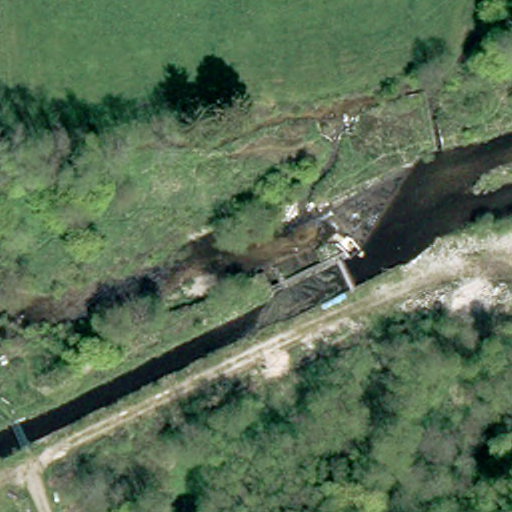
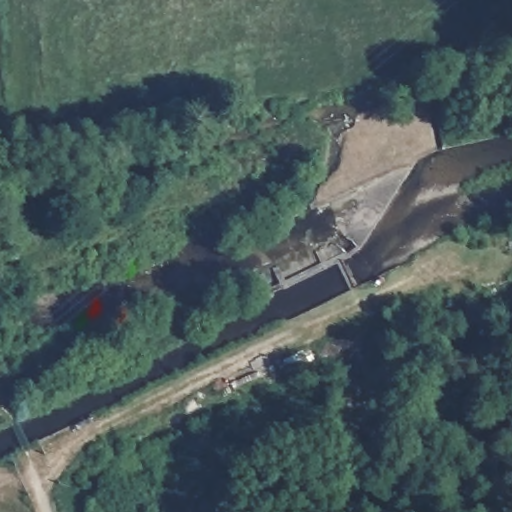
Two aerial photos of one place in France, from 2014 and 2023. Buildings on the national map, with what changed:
unchanged [(328,274),(345,265),(359,290),(341,299),(328,274)]

